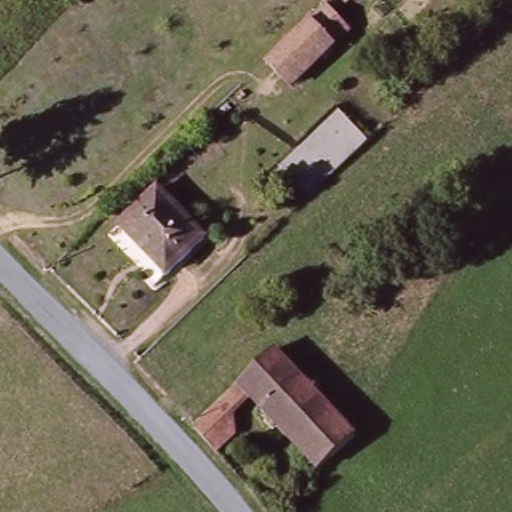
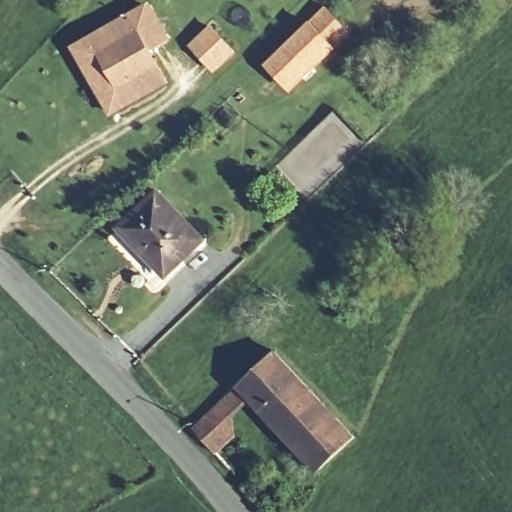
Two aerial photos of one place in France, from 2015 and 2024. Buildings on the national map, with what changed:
new [(175,42),(155,54),(170,82),(109,117),(70,47),(150,0),(175,42)]
unchanged [(271,67),(315,24),(330,7),(355,32),(337,49),(295,90),(271,67)]
new [(188,46),(210,25),(237,53),(215,72),(188,46)]
unchanged [(205,234),(168,271),(122,226),(160,191),(205,234)]
unchanged [(356,437),(318,472),(251,402),(236,414),(236,439),(220,455),(197,426),(276,351),(331,411),(356,437)]

